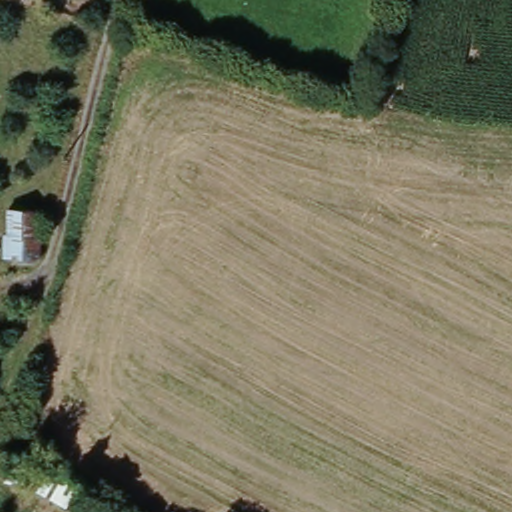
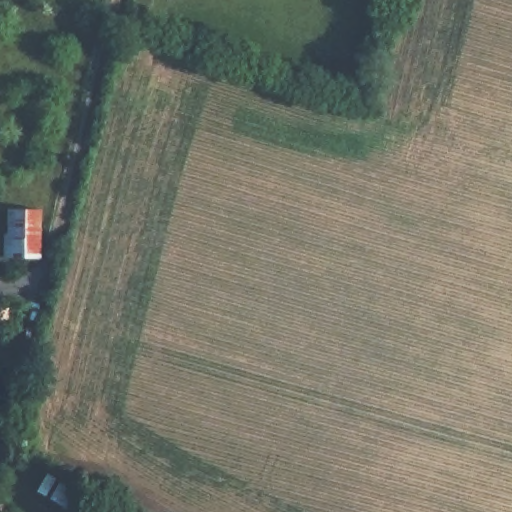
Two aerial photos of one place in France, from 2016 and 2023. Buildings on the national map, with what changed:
unchanged [(38,261),(9,258),(12,210),(41,212),(38,261)]
unchanged [(75,495),(63,510),(42,497),(54,481),(75,495)]

